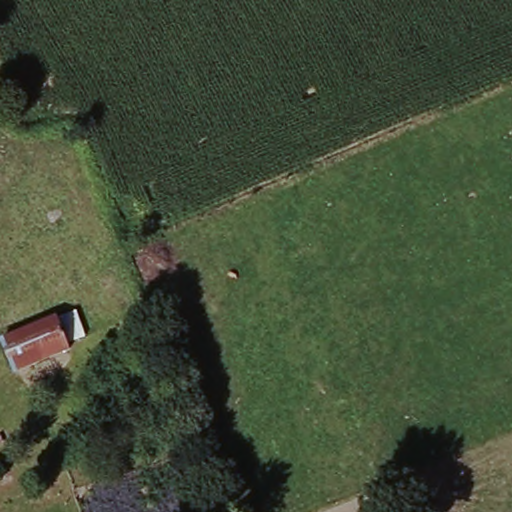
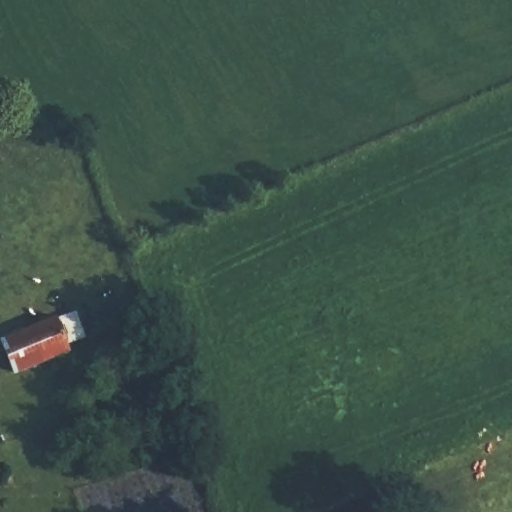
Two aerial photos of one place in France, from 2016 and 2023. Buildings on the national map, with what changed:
unchanged [(5,343),(62,319),(76,351),(18,376),(5,343)]

